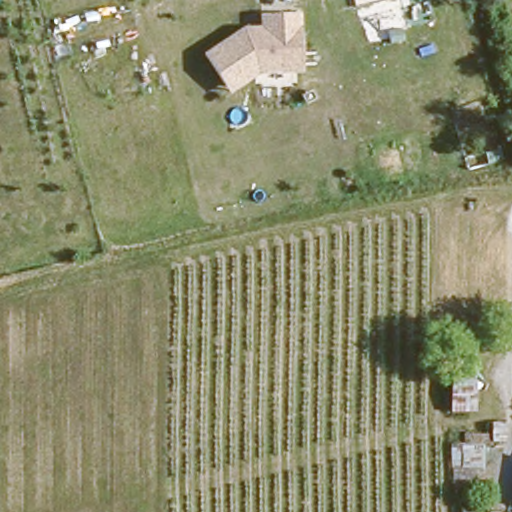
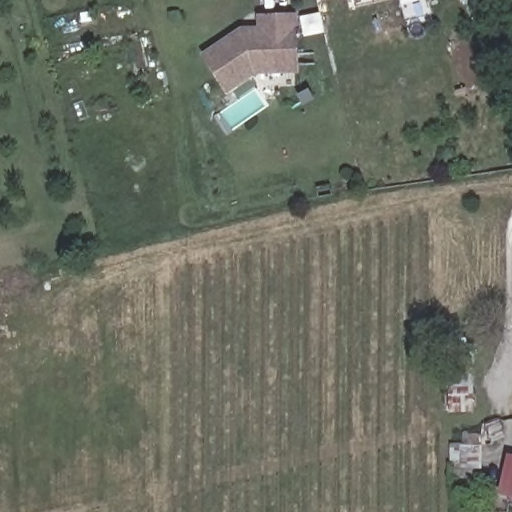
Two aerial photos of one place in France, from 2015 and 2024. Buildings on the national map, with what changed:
unchanged [(263,68),(230,94),(206,53),(242,28),(265,26),(267,15),(296,17),(296,65),(263,68)]
unchanged [(449,414),(451,366),(474,365),(476,413),(449,414)]
unchanged [(487,446),(482,447),(483,482),(451,485),(448,444),(459,443),(459,437),(486,436),(487,446)]

